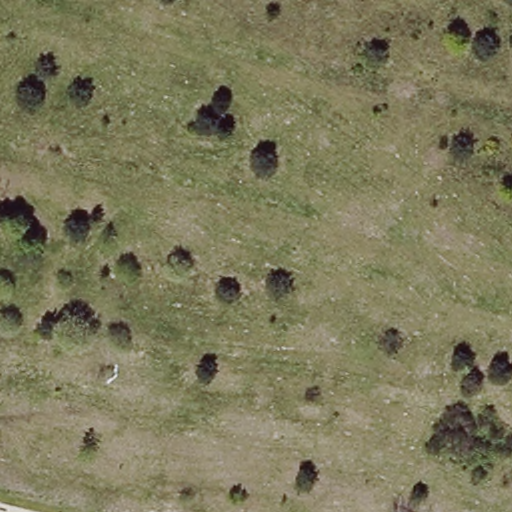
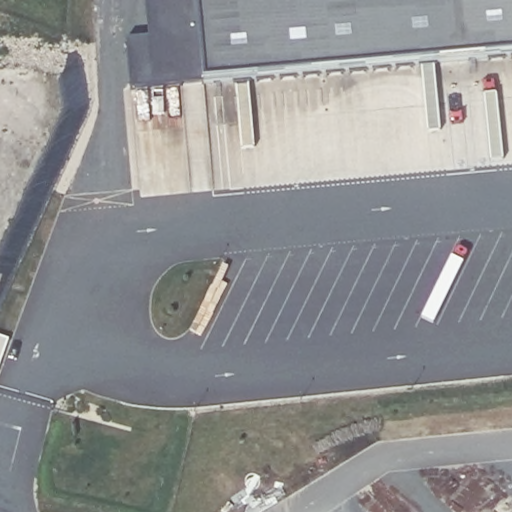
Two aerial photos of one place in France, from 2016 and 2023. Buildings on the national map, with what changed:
new [(512,61),(124,97),(119,44),(143,42),(140,0),(512,0),(512,61)]
new [(8,347),(0,372),(0,344),(8,347)]

